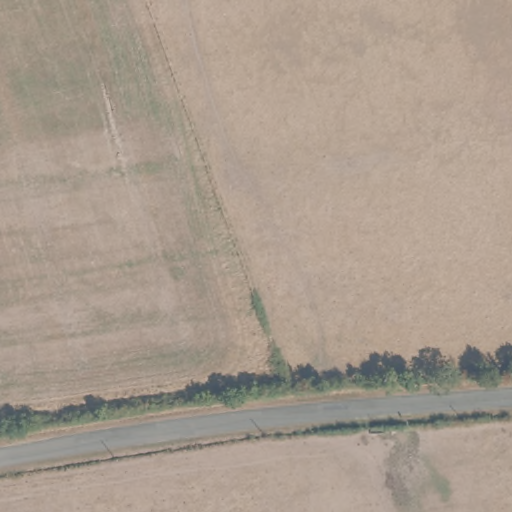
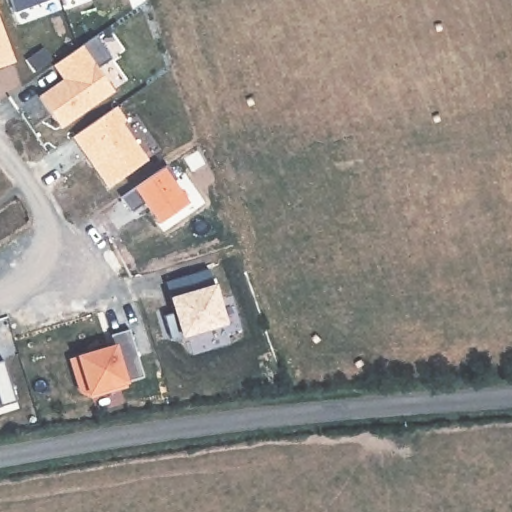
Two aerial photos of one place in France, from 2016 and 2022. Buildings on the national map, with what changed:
new [(61,79),(52,65),(94,35),(109,58),(98,65),(115,89),(61,128),(38,94),(61,79)]
new [(115,106),(125,119),(122,123),(147,159),(107,186),(72,136),(115,106)]
new [(209,269),(212,283),(214,283),(227,324),(180,338),(179,335),(171,339),(165,314),(173,313),(168,295),(164,281),(209,269)]
new [(111,344),(110,334),(129,329),(142,375),(126,379),(126,383),(128,388),(91,398),(77,390),(68,359),(75,357),(75,354),(111,344)]
new [(0,361),(2,361),(13,401),(1,404),(1,406),(0,406),(0,361)]

